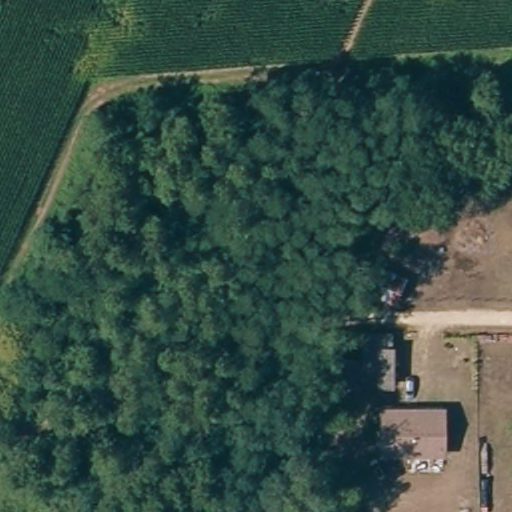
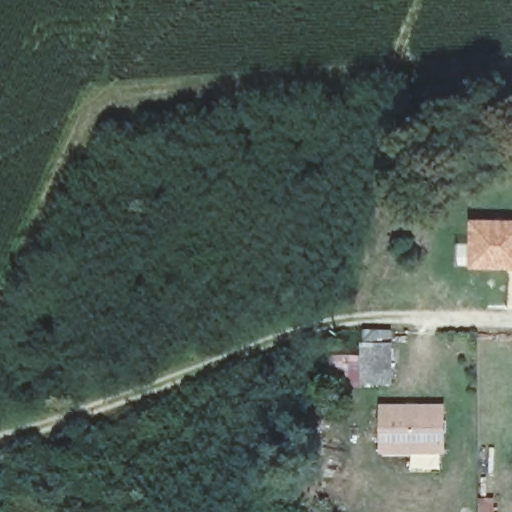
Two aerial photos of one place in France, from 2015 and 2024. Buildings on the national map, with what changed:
new [(455,244),(467,244),(469,217),(512,218),(512,269),(455,266),(455,244)]
unchanged [(389,389),(361,389),(361,353),(389,353),(389,389)]
unchanged [(442,452),(382,453),(381,410),(441,409),(442,452)]

